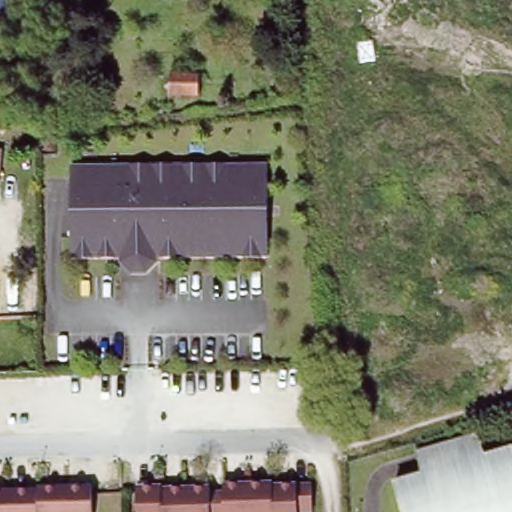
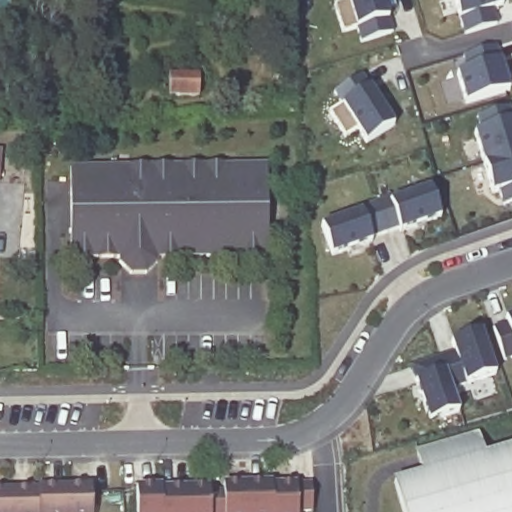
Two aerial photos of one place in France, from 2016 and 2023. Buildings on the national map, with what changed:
new [(361,44),(355,29),(340,34),(331,3),(341,0),(384,0),(388,17),(385,17),(390,35),(361,44)]
new [(462,33),(458,19),(453,0),(500,0),(502,6),(490,9),(495,25),(462,33)]
new [(466,102),(457,72),(470,70),(463,56),(495,47),(499,61),(508,90),(466,102)]
unchanged [(167,97),(168,77),(198,77),(198,96),(167,97)]
new [(343,138),(327,112),(341,103),(337,95),(362,78),(366,89),(369,87),(393,124),(365,142),(357,127),(343,138)]
new [(512,122),(512,201),(501,204),(496,191),(490,192),(475,132),(481,131),(477,117),(509,108),(510,122),(512,122)]
unchanged [(265,166),(267,258),(157,262),(157,267),(146,272),(131,272),(120,267),(120,262),(72,263),(70,171),(265,166)]
new [(400,231),(397,226),(370,236),(371,241),(330,255),(320,224),(360,211),(358,206),(390,196),(390,201),(430,188),(440,217),(400,231)]
new [(491,327),(507,322),(505,317),(512,315),(512,355),(502,359),(491,327)]
new [(496,373),(465,384),(450,389),(457,411),(427,420),(415,382),(408,367),(455,350),(451,341),(481,332),(496,373)]
unchanged [(416,480),(415,471),(410,451),(450,440),(486,428),(496,459),(512,454),(512,512),(403,512),(396,486),(416,480)]
unchanged [(222,487),(221,480),(246,480),(271,479),(271,482),(310,481),(311,507),(296,508),(296,512),(137,512),(135,482),(160,482),(160,484),(185,483),(208,483),(208,488),(222,487)]
unchanged [(41,485),(40,482),(67,482),(95,482),(95,512),(0,512),(0,485),(13,485),(41,485)]

